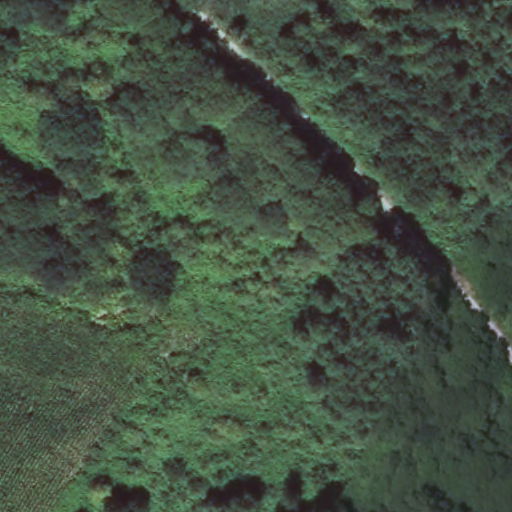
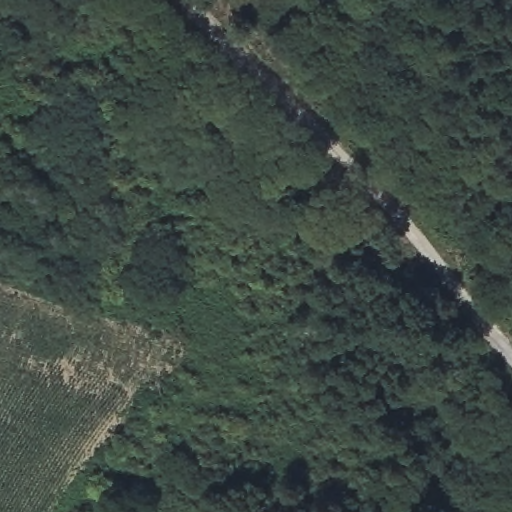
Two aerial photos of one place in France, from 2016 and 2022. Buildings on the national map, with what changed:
unchanged [(162,275),(135,325),(114,316),(139,266),(162,275)]

